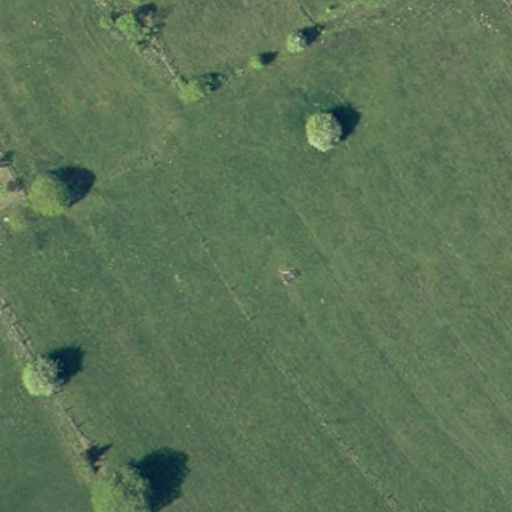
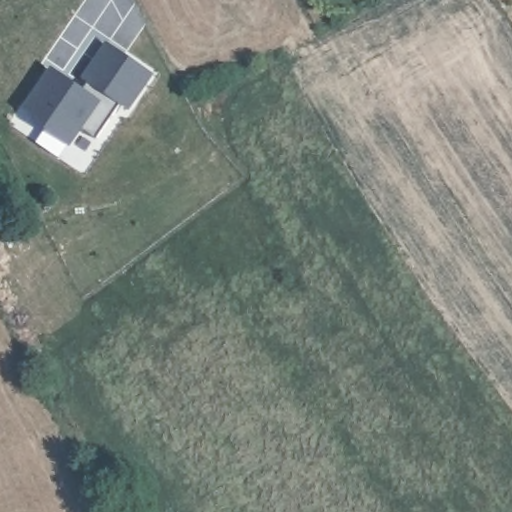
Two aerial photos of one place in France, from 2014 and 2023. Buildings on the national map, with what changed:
new [(82,88),(87,81),(82,77),(107,42),(155,75),(130,110),(120,104),(97,139),(82,130),(70,147),(45,130),(36,117),(24,109),(52,68),(82,88)]

